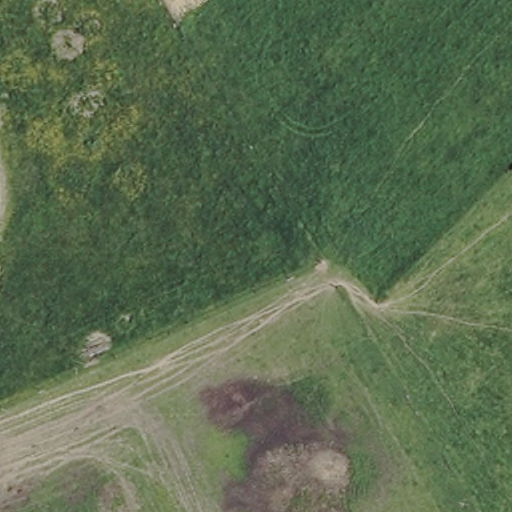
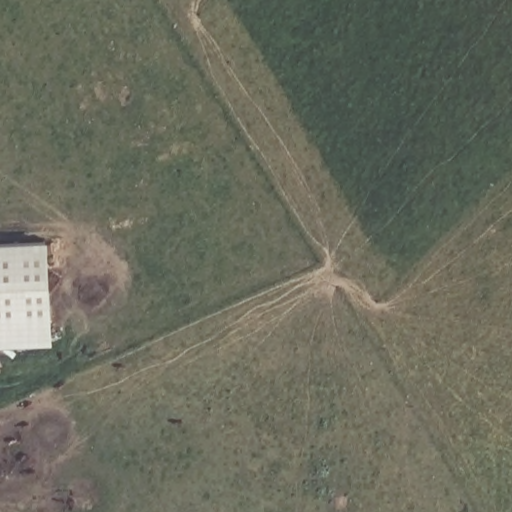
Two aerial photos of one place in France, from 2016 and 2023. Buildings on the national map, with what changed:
new [(0,347),(0,241),(48,239),(53,345),(0,347)]

